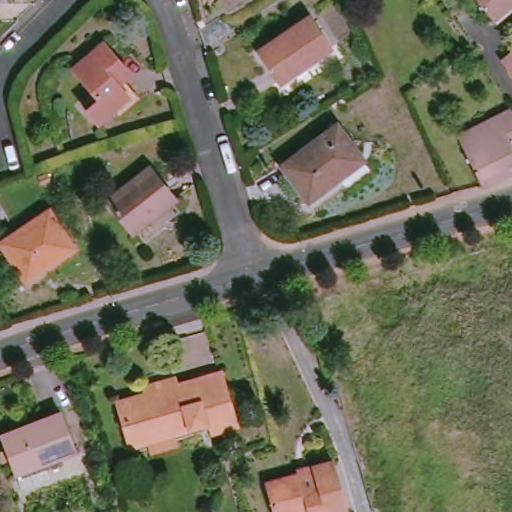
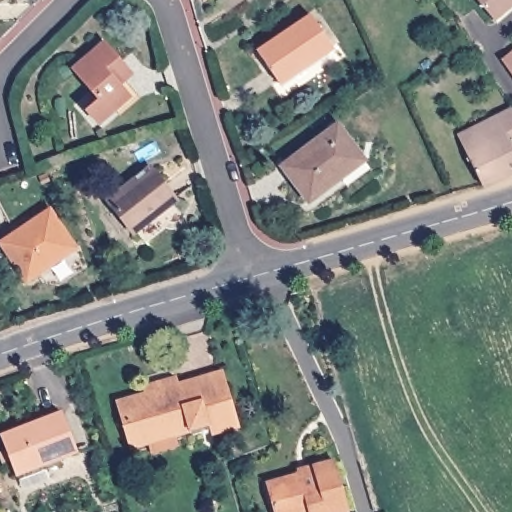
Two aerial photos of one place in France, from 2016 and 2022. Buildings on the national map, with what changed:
unchanged [(488,20),(472,0),(512,0),(488,20)]
unchanged [(327,50),(272,82),(253,51),(308,17),(327,50)]
unchanged [(67,67),(99,41),(126,74),(112,85),(123,98),(92,124),(82,110),(93,99),(67,67)]
unchanged [(512,113),(512,149),(510,150),(512,152),(512,170),(478,186),(462,153),(453,136),(477,124),(508,107),(512,113)]
unchanged [(360,157),(335,176),(338,180),(308,203),(280,167),(335,124),(360,157)]
unchanged [(173,200),(131,233),(106,201),(149,167),(173,200)]
unchanged [(73,249),(24,279),(0,241),(50,210),(73,249)]
unchanged [(128,447),(120,419),(117,420),(112,405),(144,395),(142,388),(152,385),(170,379),(174,391),(191,387),(189,379),(217,372),(227,404),(233,425),(206,433),(203,424),(168,435),(144,442),(128,447)]
unchanged [(15,474),(0,442),(0,435),(55,410),(73,448),(15,474)]
unchanged [(301,467),(327,458),(343,507),(328,512),(305,512),(305,509),(295,512),(270,512),(262,483),(302,471),(301,467)]

